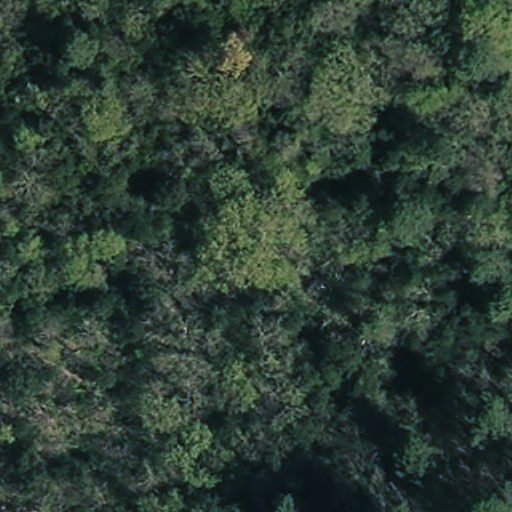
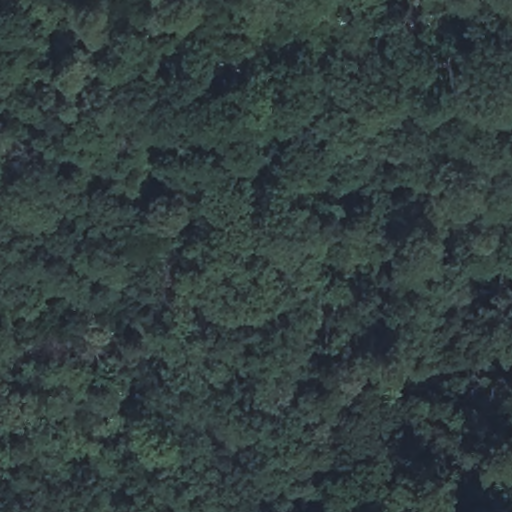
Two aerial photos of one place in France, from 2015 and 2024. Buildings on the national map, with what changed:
[]

